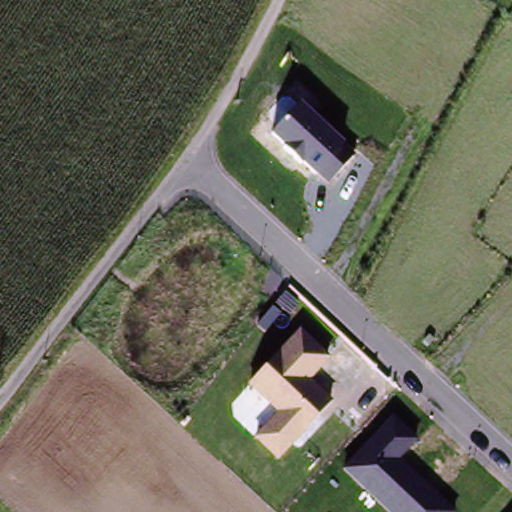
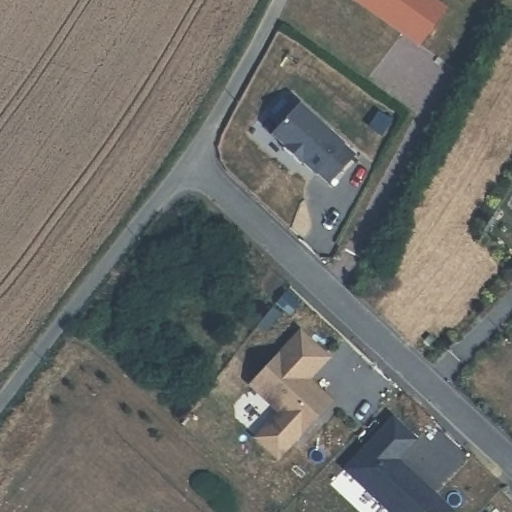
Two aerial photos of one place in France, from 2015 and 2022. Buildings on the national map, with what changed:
new [(355,0),(435,0),(446,8),(421,45),(394,27),(386,21),(355,0)]
unchanged [(270,135),(299,105),(356,156),(330,185),(270,135)]
unchanged [(298,329),(330,359),(310,379),(333,399),(277,461),(253,440),(278,413),(248,387),(298,329)]
unchanged [(390,417),(416,442),(400,458),(453,512),(387,512),(341,469),(390,417)]

